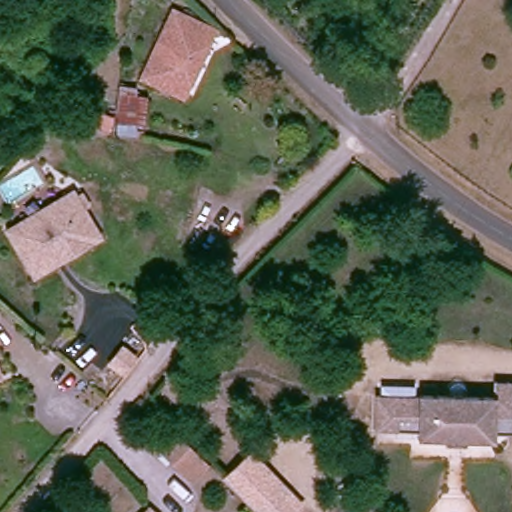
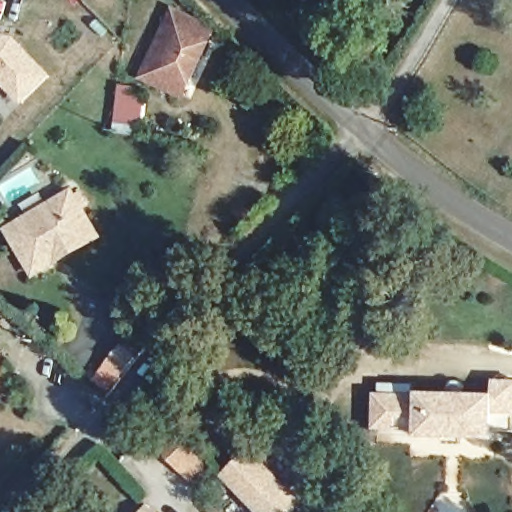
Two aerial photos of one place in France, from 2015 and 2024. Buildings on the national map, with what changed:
unchanged [(155,96),(138,89),(173,7),(216,25),(186,94),(181,106),(155,96)]
new [(21,105),(0,83),(0,35),(14,37),(51,77),(21,105)]
unchanged [(69,251),(51,262),(30,275),(20,259),(3,231),(42,206),(66,191),(68,194),(78,210),(94,235),(69,251)]
unchanged [(131,367),(118,383),(103,370),(116,354),(131,367)]
unchanged [(501,397),(502,389),(512,390),(512,442),(489,439),(488,449),(420,444),(420,436),(378,432),(378,411),(378,395),(387,396),(423,398),(423,391),(501,397)]
unchanged [(186,474),(176,463),(156,442),(174,424),(181,432),(194,446),(204,457),(186,474)]
unchanged [(250,450),(299,503),(290,512),(257,512),(251,507),(222,476),(250,450)]
unchanged [(151,501),(163,512),(140,512),(151,501)]

